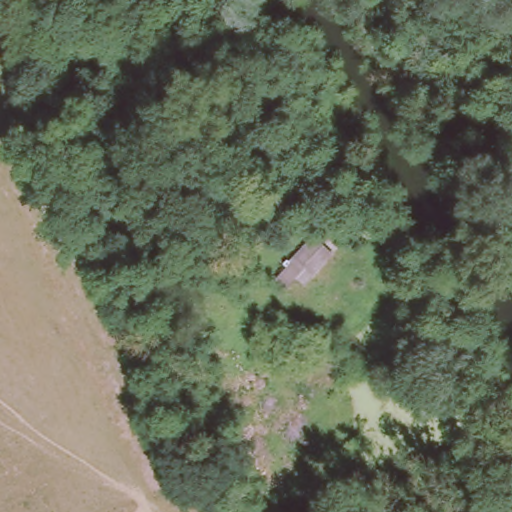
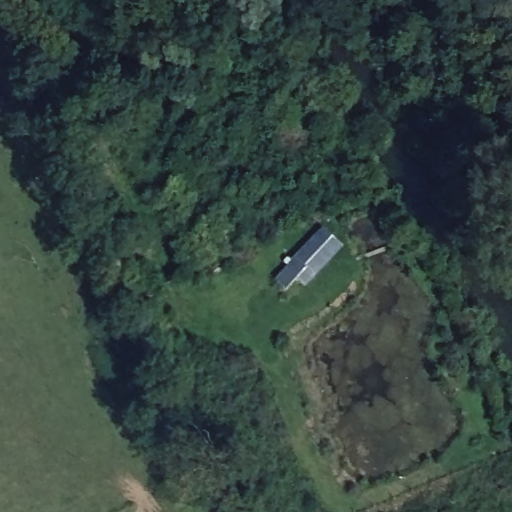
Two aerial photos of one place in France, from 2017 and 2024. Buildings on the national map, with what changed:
unchanged [(309,281),(300,275),(288,286),(277,278),(317,232),(335,252),(309,281)]

